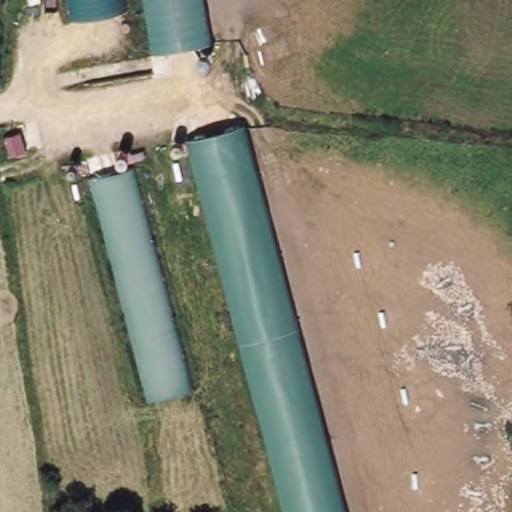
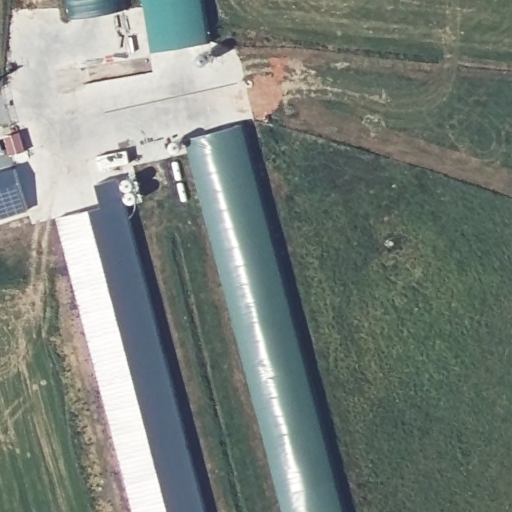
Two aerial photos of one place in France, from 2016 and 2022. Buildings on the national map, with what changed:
unchanged [(68,19),(65,0),(124,0),(125,9),(68,19)]
unchanged [(157,52),(149,0),(205,0),(212,43),(157,52)]
unchanged [(348,512),(281,512),(180,139),(245,125),(348,512)]
new [(15,167),(28,210),(0,218),(0,172),(15,167)]
demolished [(93,177),(134,167),(194,388),(150,400),(93,177)]
new [(206,512),(136,512),(58,217),(101,206),(95,184),(118,176),(206,512)]

